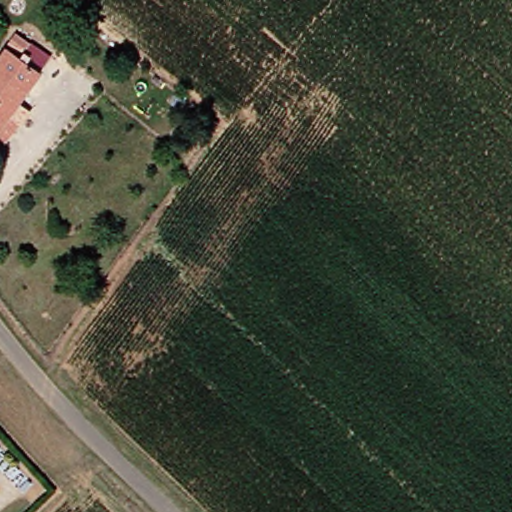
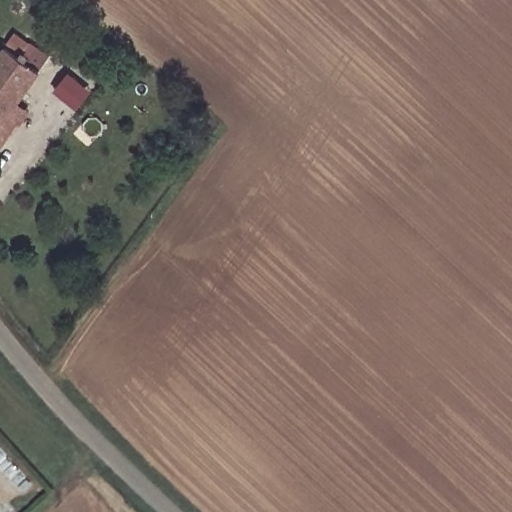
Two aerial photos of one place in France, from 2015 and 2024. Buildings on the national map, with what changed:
unchanged [(8,116),(17,123),(0,147),(0,56),(5,48),(40,73),(8,116)]

